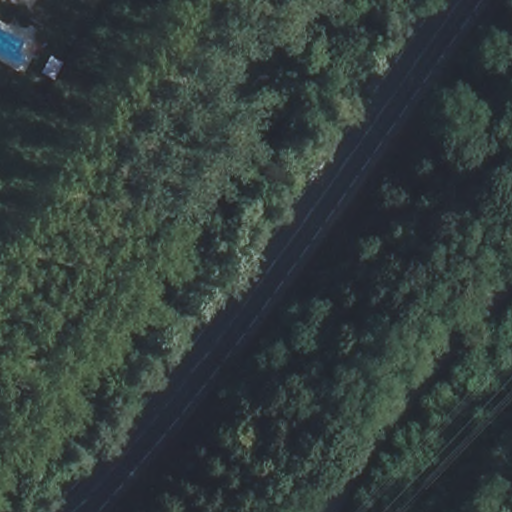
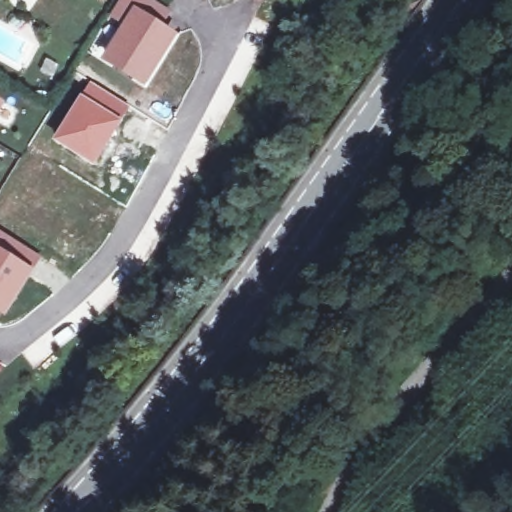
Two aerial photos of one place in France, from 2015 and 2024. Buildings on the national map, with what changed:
new [(120,26),(107,17),(118,0),(154,0),(170,10),(162,25),(177,34),(142,89),(97,60),(120,26)]
new [(89,81),(130,107),(91,168),(50,141),(89,81)]
new [(3,101),(0,106),(0,99),(3,101)]
new [(41,256),(3,318),(0,316),(0,230),(41,256)]

